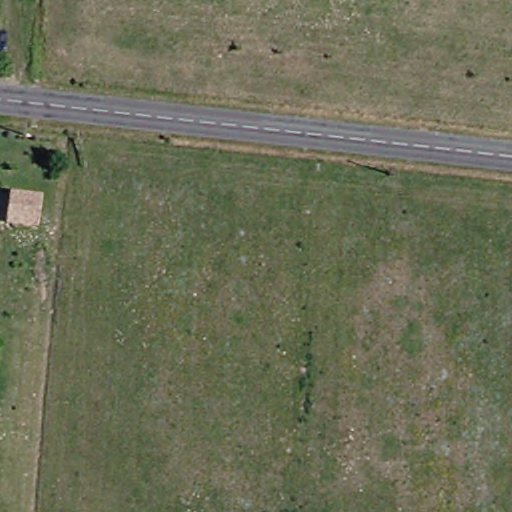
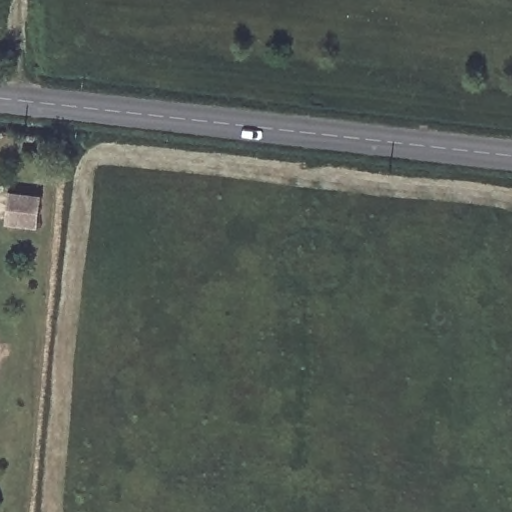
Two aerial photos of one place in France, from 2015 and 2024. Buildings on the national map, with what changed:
unchanged [(38,224),(9,220),(11,190),(41,194),(38,224)]

